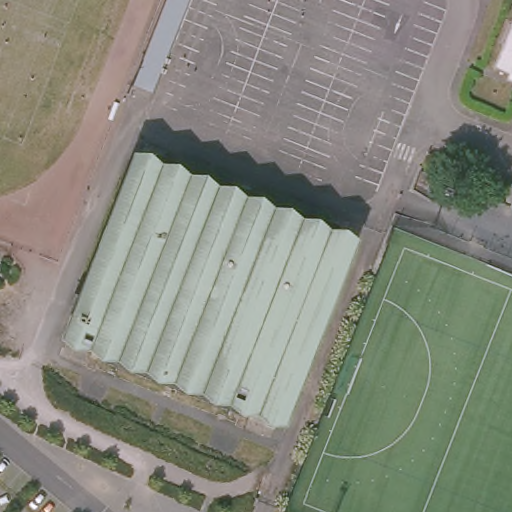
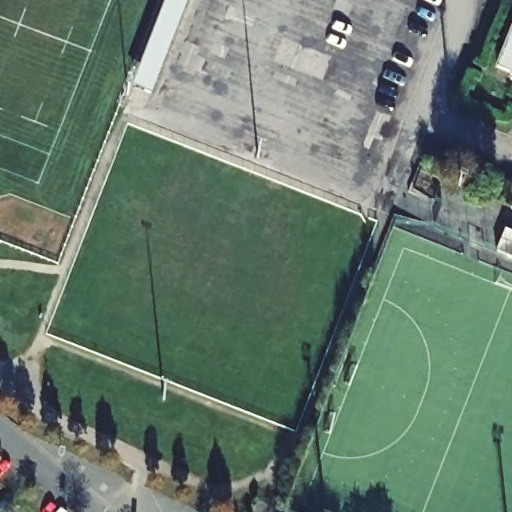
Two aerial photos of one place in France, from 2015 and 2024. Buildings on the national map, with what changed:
unchanged [(146,90),(130,84),(163,0),(181,0),(146,90)]
unchanged [(508,75),(511,67),(496,61),(512,20),(512,76),(508,75)]
demolished [(347,238),(275,421),(232,403),(227,413),(107,366),(110,358),(65,340),(137,156),(347,238)]

